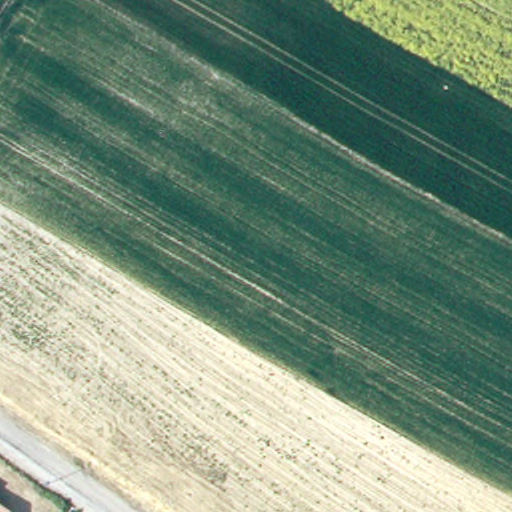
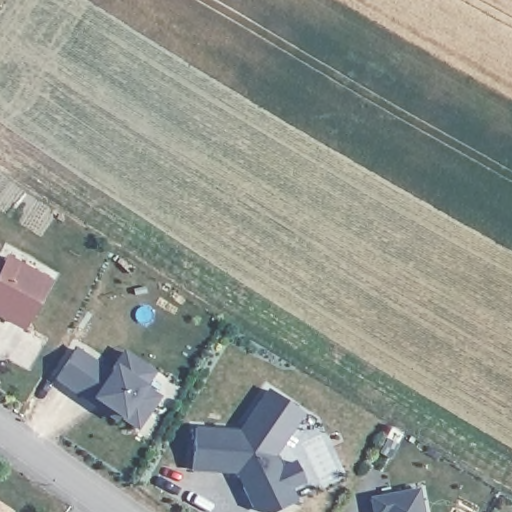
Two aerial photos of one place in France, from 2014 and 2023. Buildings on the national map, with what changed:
new [(21,331),(0,320),(0,259),(1,260),(4,254),(50,279),(21,331)]
new [(155,371),(145,386),(160,396),(136,430),(117,417),(114,422),(52,379),(75,345),(107,369),(122,348),(155,371)]
new [(303,414),(275,455),(280,465),(293,459),(305,482),(291,488),(296,500),(271,512),(258,512),(250,510),(235,474),(190,470),(194,420),(240,424),(266,387),(303,414)]
unchanged [(423,512),(371,512),(368,495),(417,486),(423,512)]
unchanged [(0,505),(9,512),(0,512),(0,505)]

